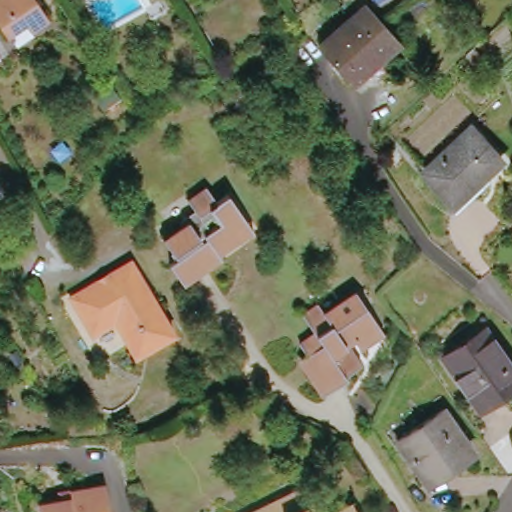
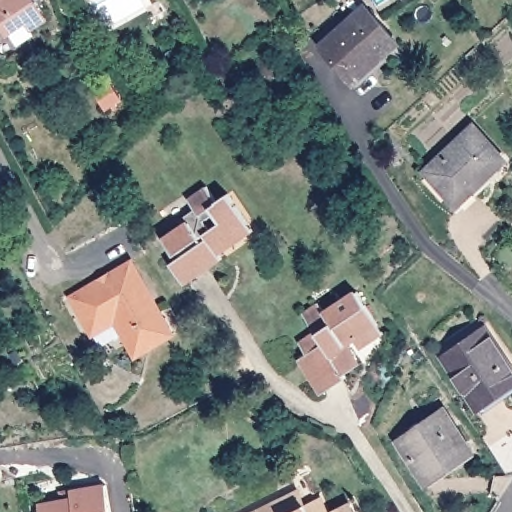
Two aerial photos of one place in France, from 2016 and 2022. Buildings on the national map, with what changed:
unchanged [(17,32),(14,34),(10,36),(0,20),(0,0),(38,0),(54,23),(59,30),(50,36),(29,51),(25,44),(17,32)]
unchanged [(384,60),(381,56),(362,72),(365,76),(356,84),(323,47),(367,7),(401,45),(384,60)]
unchanged [(479,66),(468,56),(475,50),(485,61),(479,66)]
unchanged [(504,157),(471,188),(474,193),(460,206),(428,172),(475,127),(504,157)]
unchanged [(234,236),(240,243),(224,253),(227,257),(189,284),(176,265),(183,260),(169,239),(191,225),(187,220),(201,210),(195,202),(213,189),(223,203),(234,195),(253,223),(234,236)]
unchanged [(143,358),(121,322),(98,335),(74,296),(134,260),(179,336),(143,358)]
unchanged [(361,341),(357,334),(347,340),(364,365),(351,375),(352,378),(329,394),(319,379),(322,377),(310,358),(313,355),(307,345),(321,335),(310,317),(325,306),(331,314),(362,293),(384,326),(361,341)]
unchanged [(483,409),(448,358),(491,329),(512,359),(512,389),(483,409)]
unchanged [(478,450),(432,483),(403,443),(449,411),(478,450)]
unchanged [(491,448),(512,434),(512,474),(509,474),(491,448)]
unchanged [(74,502),(73,496),(106,489),(110,512),(43,512),(43,507),(74,502)]
unchanged [(331,512),(312,512),(327,504),(331,512)]
unchanged [(275,512),(283,508),(285,512),(275,512)]
unchanged [(358,512),(349,512),(357,508),(358,512)]
unchanged [(311,512),(307,512),(310,510),(311,512)]

